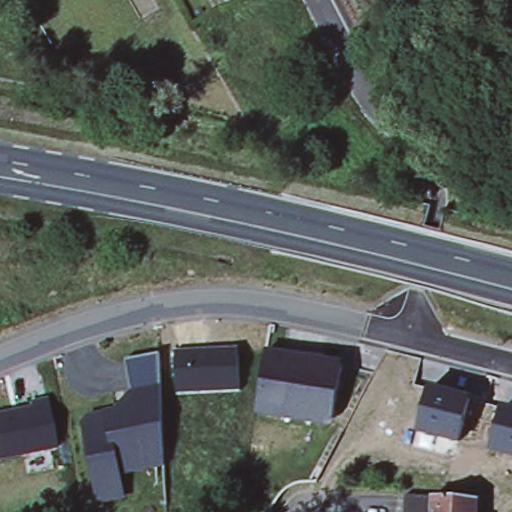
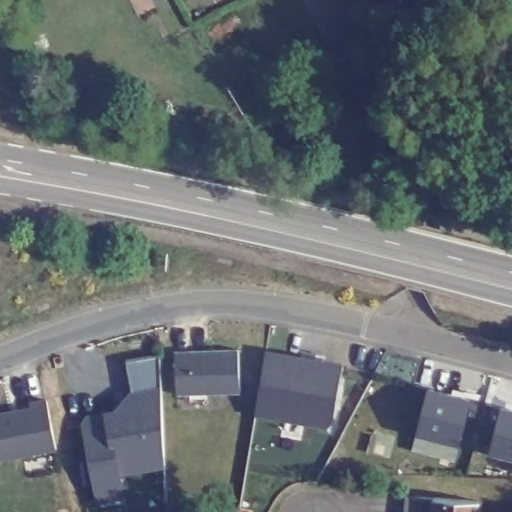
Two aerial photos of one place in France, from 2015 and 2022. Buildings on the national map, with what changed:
unchanged [(242,394),(182,397),(178,356),(240,353),(242,394)]
unchanged [(326,424),(255,412),(265,354),(315,362),(342,367),(340,373),(332,420),(326,424)]
unchanged [(161,355),(164,456),(144,459),(135,453),(115,457),(122,497),(97,502),(84,424),(88,418),(103,415),(103,416),(123,413),(134,401),(127,361),(161,355)]
unchanged [(429,386),(470,397),(460,444),(417,433),(429,386)]
unchanged [(0,414),(32,408),(30,404),(50,401),(57,451),(0,461),(0,414)]
unchanged [(500,406),(512,408),(512,458),(487,452),(500,406)]
unchanged [(408,512),(408,498),(438,499),(481,501),(480,512),(408,512)]

